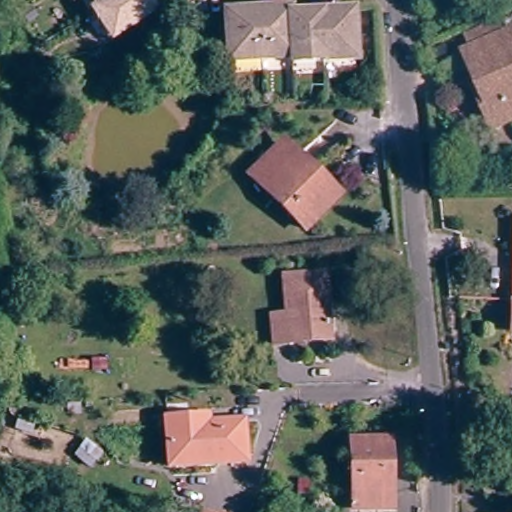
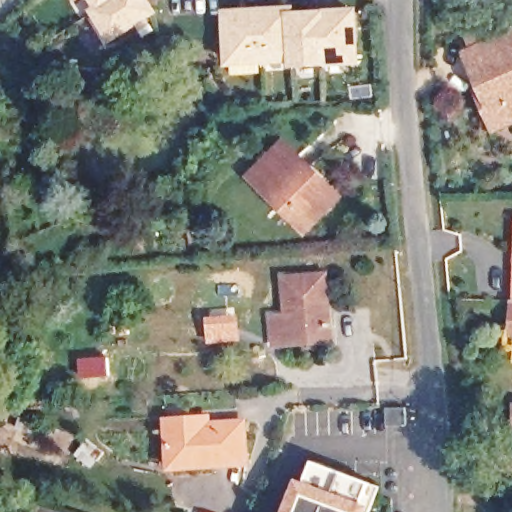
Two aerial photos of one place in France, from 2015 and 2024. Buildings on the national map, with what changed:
unchanged [(115,34),(97,6),(102,3),(99,0),(152,0),(156,6),(151,10),(115,34)]
unchanged [(296,53),(234,61),(228,18),(227,12),(243,10),(275,6),(290,4),(291,10),(306,8),(338,4),(353,2),(354,8),(360,50),(297,58),(296,53)]
unchanged [(477,86),(481,85),(466,50),(512,30),(512,118),(495,126),(477,86)]
unchanged [(307,232),(263,190),(252,179),(284,146),(296,157),(339,200),(307,232)]
unchanged [(331,342),(275,347),(273,318),(288,316),(285,279),(326,275),(331,342)]
unchanged [(171,469),(167,421),(190,420),(208,418),(209,425),(245,423),(248,464),(171,469)]
demolished [(394,510),(353,512),(351,443),(391,441),(394,510)]
new [(300,481),(307,483),(315,465),(373,487),(366,504),(373,507),(371,512),(287,512),(300,481)]

